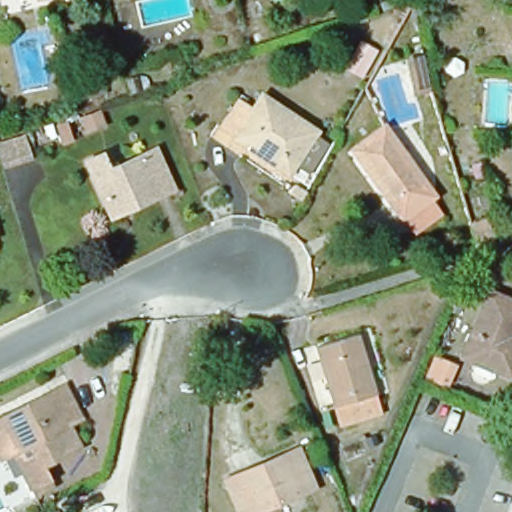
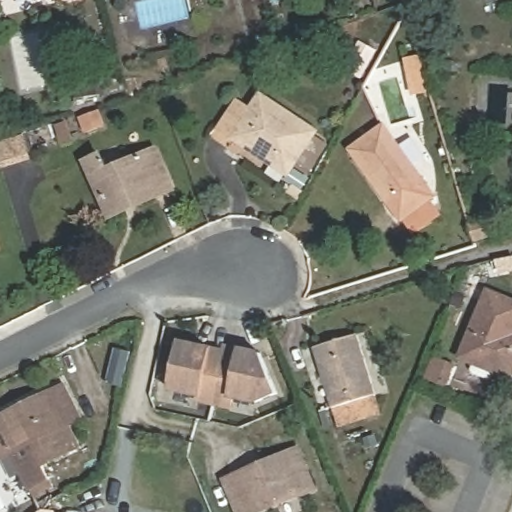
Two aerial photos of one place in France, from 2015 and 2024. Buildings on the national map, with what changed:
unchanged [(39,0),(47,0),(39,2),(39,0)]
unchanged [(69,0),(71,0),(69,1),(69,0)]
unchanged [(235,139),(264,97),(317,134),(289,174),(235,139)]
unchanged [(447,216),(410,240),(349,147),(382,122),(447,216)]
unchanged [(0,144),(25,136),(34,162),(3,172),(0,162),(0,144)]
unchanged [(110,222),(105,211),(85,167),(98,161),(104,177),(149,157),(162,186),(167,196),(110,222)]
unchanged [(490,220),(496,240),(474,246),(469,225),(490,220)]
unchanged [(508,380),(458,357),(487,292),(512,303),(512,332),(511,336),(512,337),(512,370),(508,380)]
unchanged [(313,348),(355,336),(378,415),(337,427),(313,348)]
new [(169,392),(180,340),(213,347),(224,350),(215,407),(199,404),(201,398),(169,392)]
new [(215,407),(224,350),(226,344),(241,348),(262,352),(278,396),(257,405),(235,400),(232,412),(215,407)]
unchanged [(435,358),(458,366),(449,390),(426,381),(435,358)]
unchanged [(68,392),(83,425),(70,431),(81,452),(42,472),(31,451),(1,466),(0,464),(0,426),(4,424),(68,392)]
unchanged [(225,482),(294,453),(308,488),(252,512),(238,512),(225,482)]

